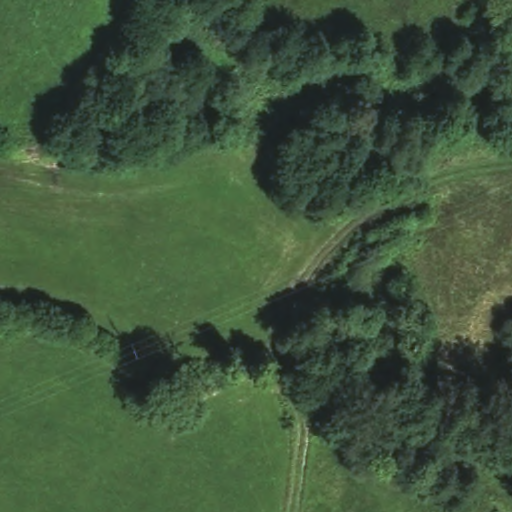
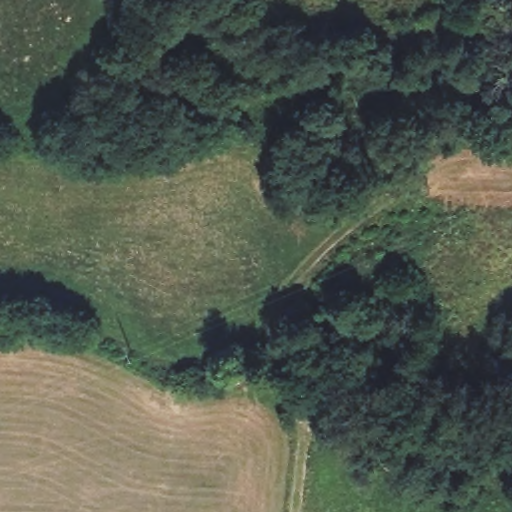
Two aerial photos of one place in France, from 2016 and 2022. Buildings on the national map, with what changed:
[]

